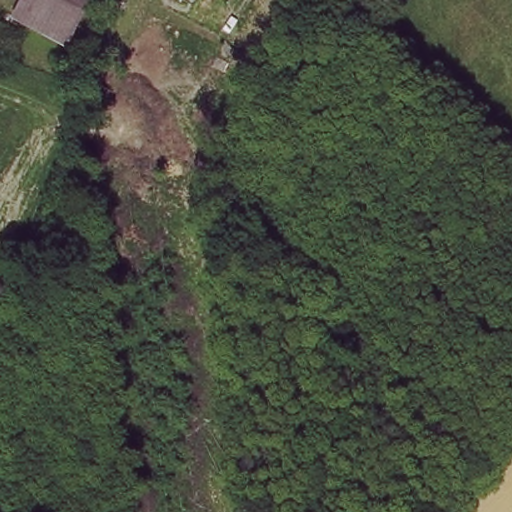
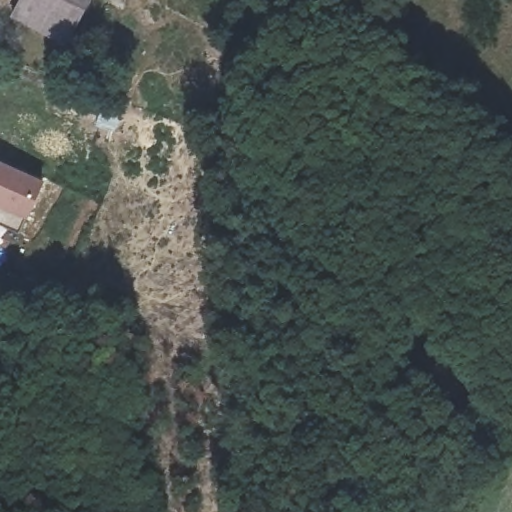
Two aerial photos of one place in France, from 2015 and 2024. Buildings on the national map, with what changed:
unchanged [(5,13),(12,0),(90,0),(67,44),(5,13)]
new [(1,161),(43,180),(26,217),(20,233),(0,224),(0,163),(1,161)]

